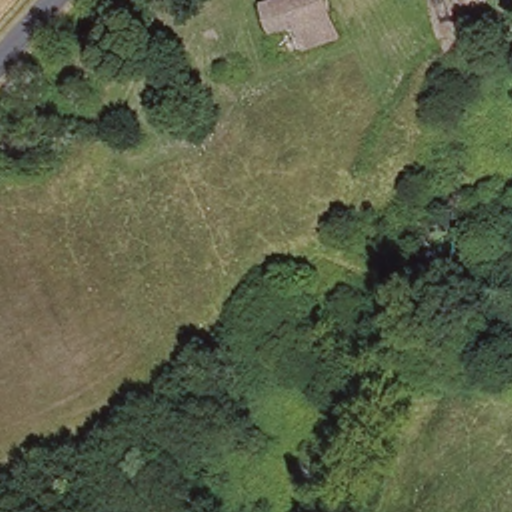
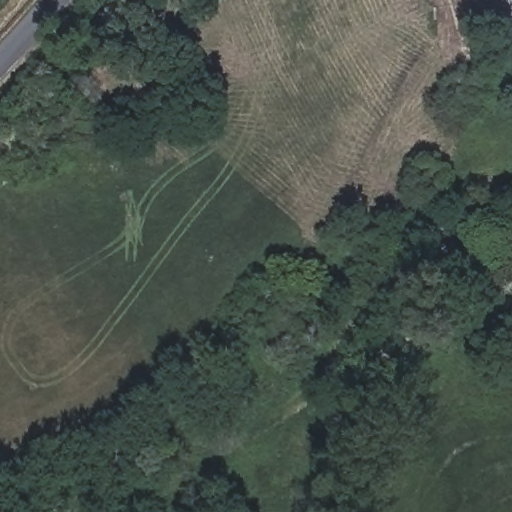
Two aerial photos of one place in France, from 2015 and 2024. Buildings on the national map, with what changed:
demolished [(329,0),(340,39),(276,59),(256,5),(270,0),(329,0)]

